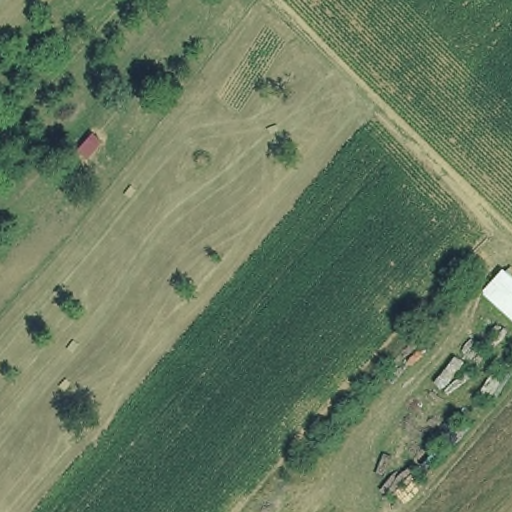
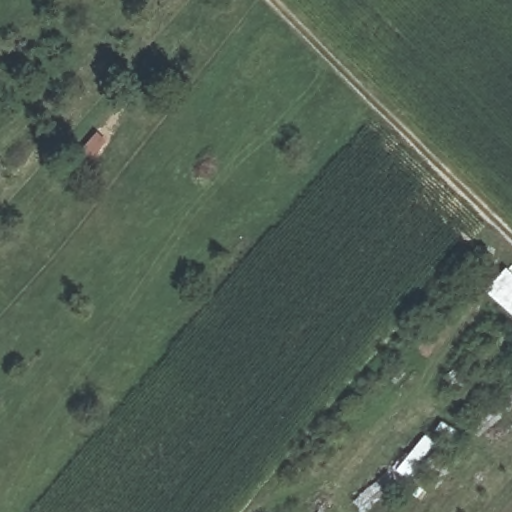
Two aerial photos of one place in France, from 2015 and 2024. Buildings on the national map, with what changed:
unchanged [(482,291),(511,262),(512,263),(512,319),(482,291)]

